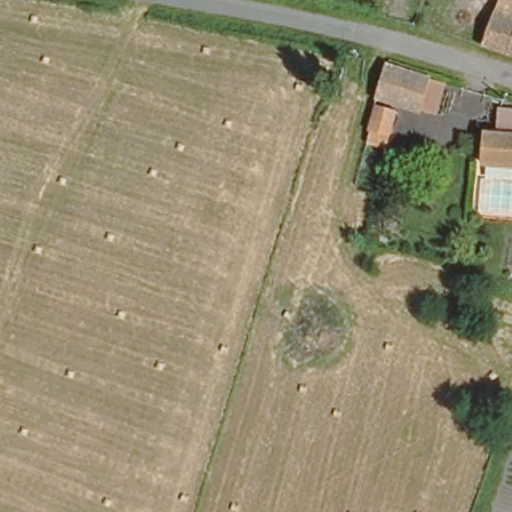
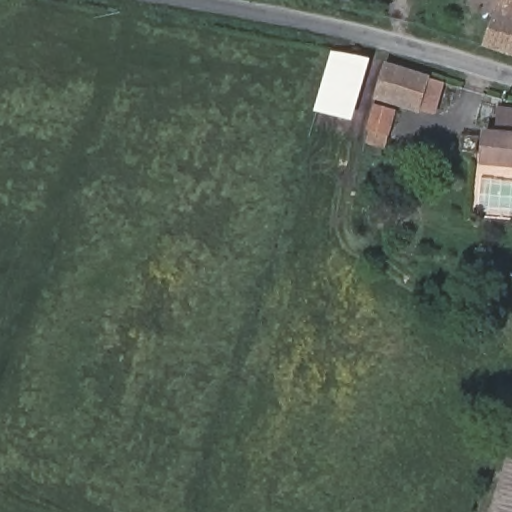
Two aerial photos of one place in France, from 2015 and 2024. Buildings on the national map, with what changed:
unchanged [(497,18),(504,0),(512,0),(512,61),(485,52),(497,18)]
new [(333,50),(371,61),(353,122),(315,111),(333,50)]
unchanged [(434,111),(375,97),(384,69),(441,82),(434,111)]
unchanged [(386,150),(362,143),(371,104),(394,111),(386,150)]
unchanged [(492,135),(504,135),(506,111),(512,111),(512,169),(492,166),(492,135)]

